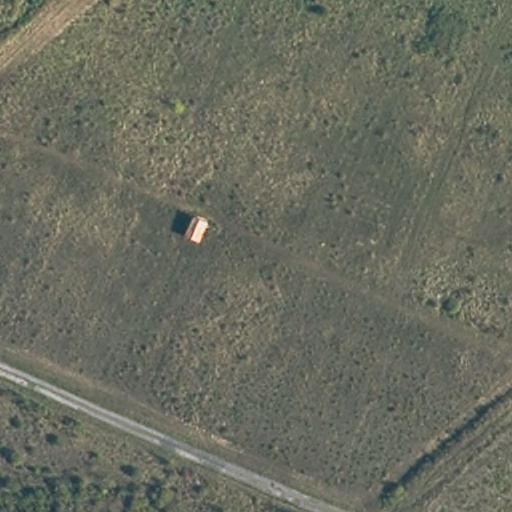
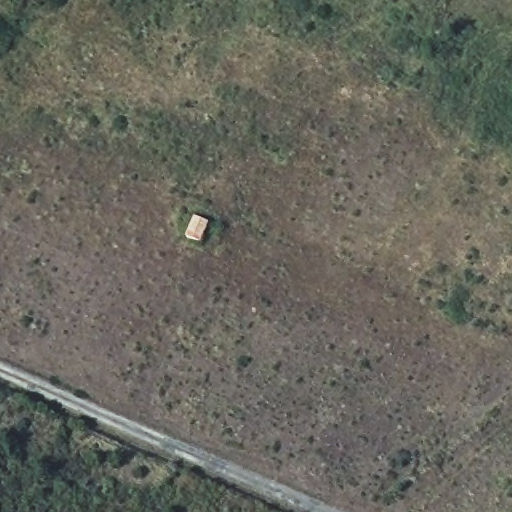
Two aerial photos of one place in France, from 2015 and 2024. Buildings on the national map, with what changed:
unchanged [(210,221),(200,243),(186,236),(193,216),(210,221)]

